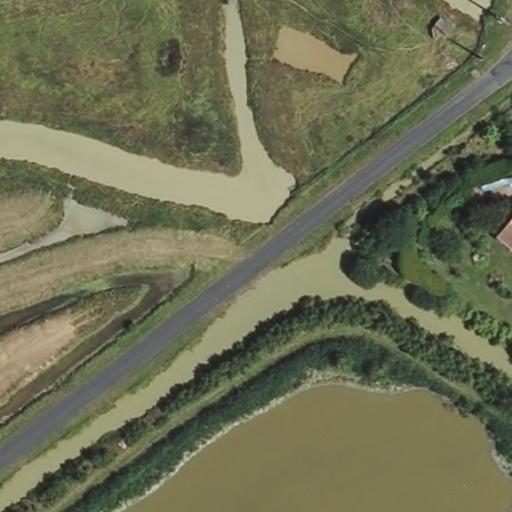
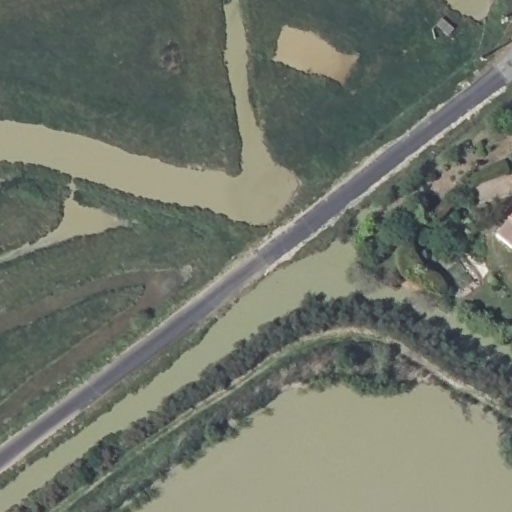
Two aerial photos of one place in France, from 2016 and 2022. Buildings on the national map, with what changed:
unchanged [(498,237),(512,222),(512,251),(498,237)]

